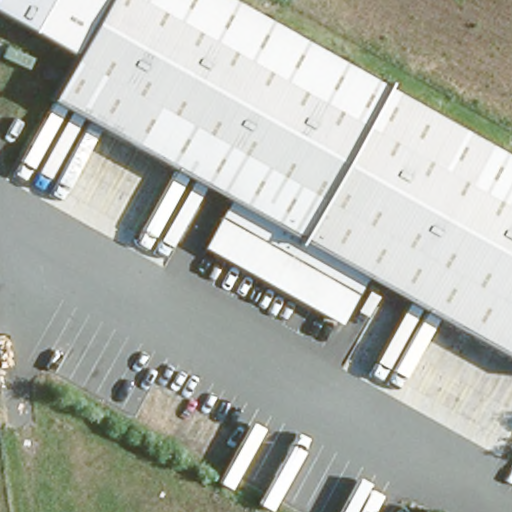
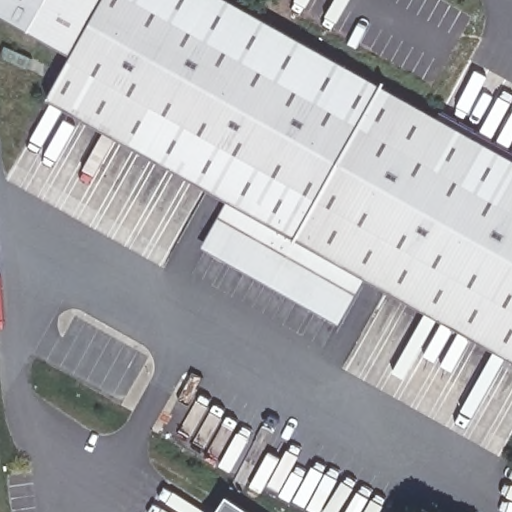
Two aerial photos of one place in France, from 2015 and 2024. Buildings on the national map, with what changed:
unchanged [(0,14),(0,0),(106,0),(74,56),(0,14)]
unchanged [(106,0),(232,0),(512,159),(512,361),(365,278),(338,325),(200,248),(230,200),(50,98),(74,56),(106,0)]
new [(226,498),(247,512),(218,512),(226,498)]

